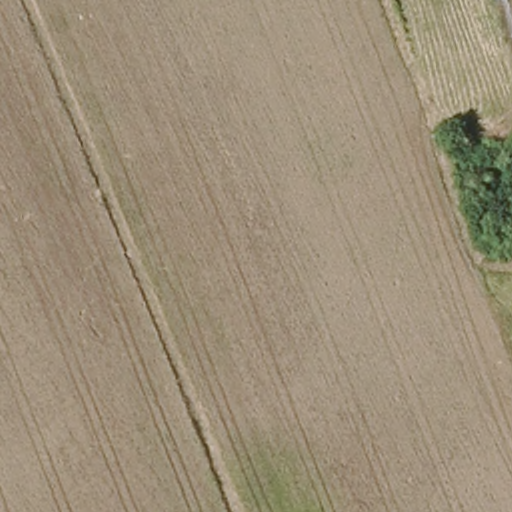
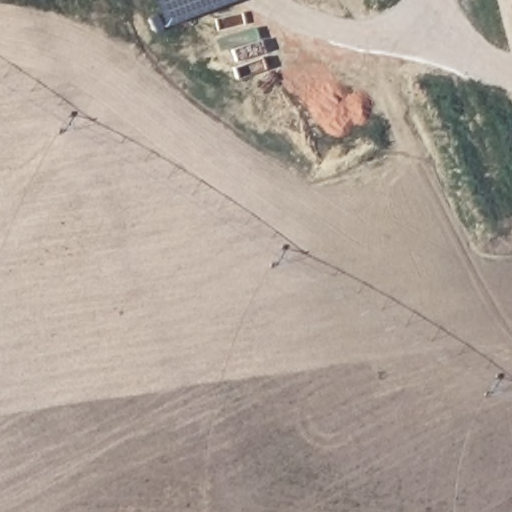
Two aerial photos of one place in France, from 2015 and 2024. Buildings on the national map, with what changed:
new [(164,26),(153,0),(226,0),(164,26)]

